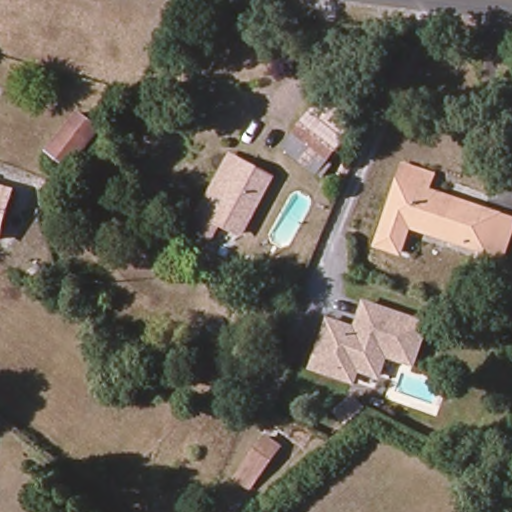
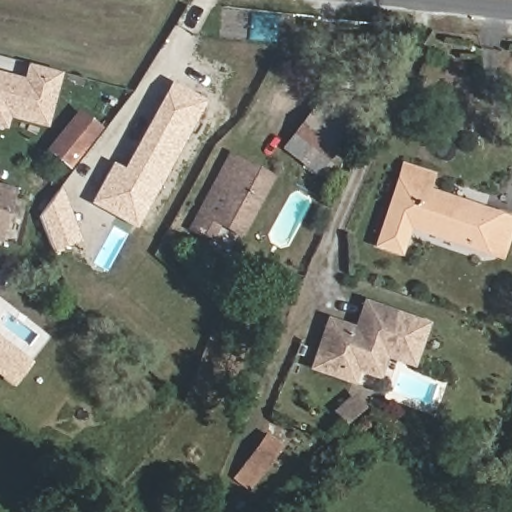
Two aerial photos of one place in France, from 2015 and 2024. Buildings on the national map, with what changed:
new [(49,128),(10,117),(7,130),(0,128),(0,72),(24,78),(27,63),(63,73),(49,128)]
new [(112,164),(122,169),(171,81),(207,100),(137,228),(90,203),(112,164)]
unchanged [(265,115),(257,106),(262,101),(276,86),(285,94),(272,107),(265,115)]
unchanged [(103,125),(67,167),(44,146),(81,104),(103,125)]
unchanged [(319,175),(282,146),(295,130),(312,111),(321,118),(347,141),(332,160),(319,175)]
unchanged [(272,178),(261,198),(241,234),(218,222),(209,239),(190,228),(229,155),(251,167),(272,178)]
unchanged [(496,253),(478,248),(457,241),(424,230),(404,224),(393,253),(372,244),(398,165),(427,175),(422,190),(491,212),(510,218),(496,253)]
unchanged [(0,241),(0,184),(17,188),(0,241)]
new [(81,241),(52,252),(39,216),(63,186),(81,241)]
unchanged [(353,362),(351,369),(311,355),(325,315),(342,321),(340,326),(351,329),(356,326),(360,315),(356,314),(362,297),(422,319),(408,358),(382,349),(374,369),(353,362)]
new [(32,362),(13,387),(0,377),(0,337),(32,362)]
unchanged [(265,437),(277,446),(247,488),(235,479),(265,437)]

